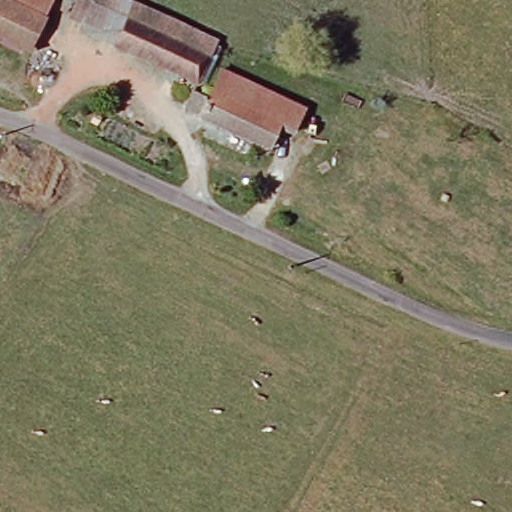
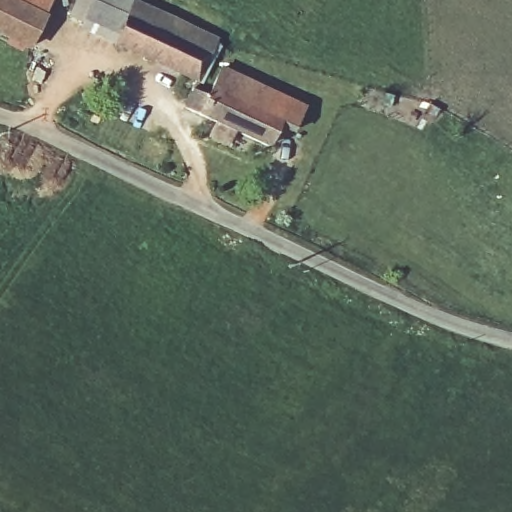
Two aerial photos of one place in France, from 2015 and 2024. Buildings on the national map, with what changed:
unchanged [(23,46),(0,35),(0,0),(7,0),(38,16),(23,46)]
unchanged [(7,0),(46,0),(38,16),(7,0)]
unchanged [(136,8),(207,45),(187,85),(117,47),(136,8)]
unchanged [(189,98),(202,103),(216,75),(301,114),(290,139),(274,133),(264,152),(182,114),(189,98)]

